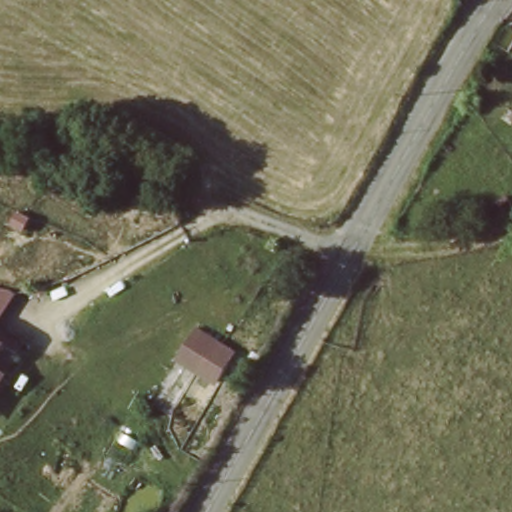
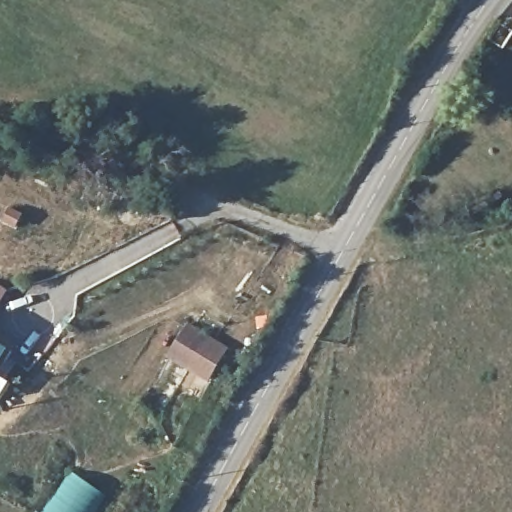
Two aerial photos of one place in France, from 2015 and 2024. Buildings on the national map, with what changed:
unchanged [(211,384),(168,358),(188,322),(229,347),(211,384)]
new [(96,512),(49,512),(75,473),(107,495),(96,512)]

